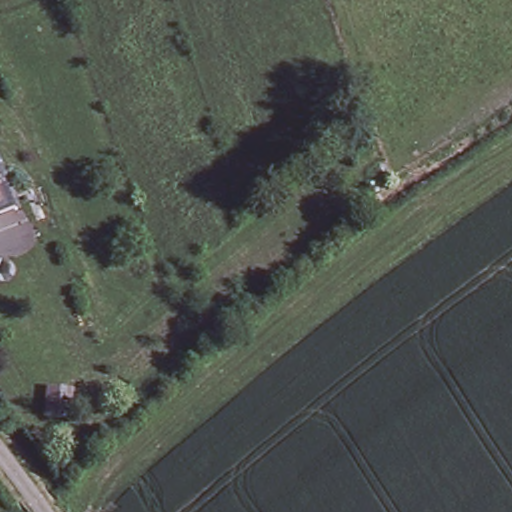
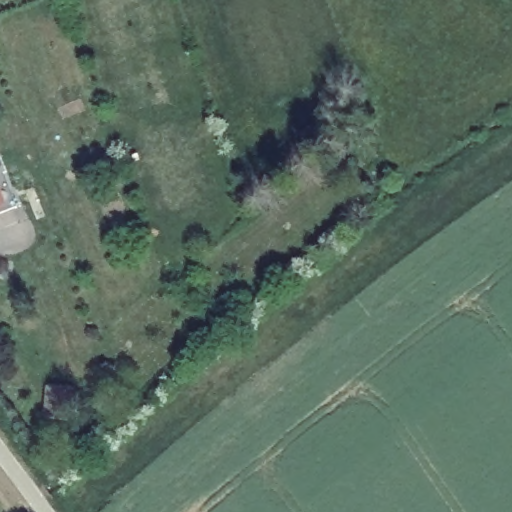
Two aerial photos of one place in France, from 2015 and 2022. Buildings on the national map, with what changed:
unchanged [(0,206),(0,189),(6,203),(0,206)]
unchanged [(72,415),(43,412),(45,385),(73,387),(72,415)]

